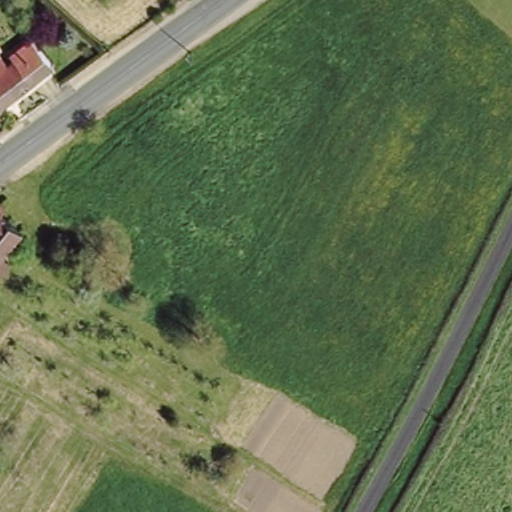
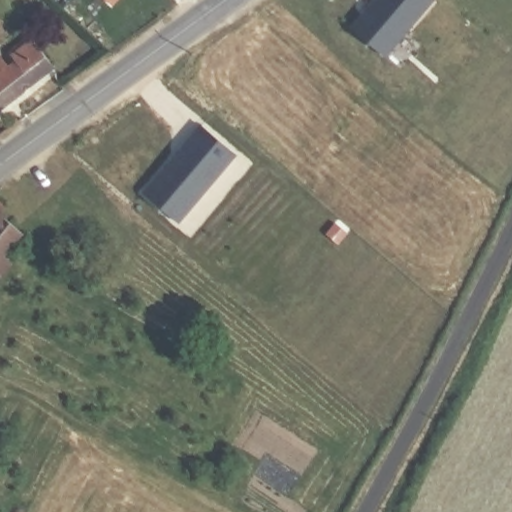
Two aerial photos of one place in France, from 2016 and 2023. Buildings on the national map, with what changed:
new [(115,5),(109,0),(120,0),(115,5)]
new [(387,57),(351,27),(374,0),(438,0),(387,57)]
unchanged [(0,53),(9,64),(17,57),(11,49),(32,33),(54,61),(1,104),(0,102),(0,53)]
unchanged [(0,104),(0,102),(1,104),(0,104)]
new [(199,123),(233,151),(176,220),(142,191),(199,123)]
unchanged [(2,203),(29,225),(21,234),(19,232),(7,245),(13,250),(1,265),(0,264),(0,190),(8,196),(2,203)]

